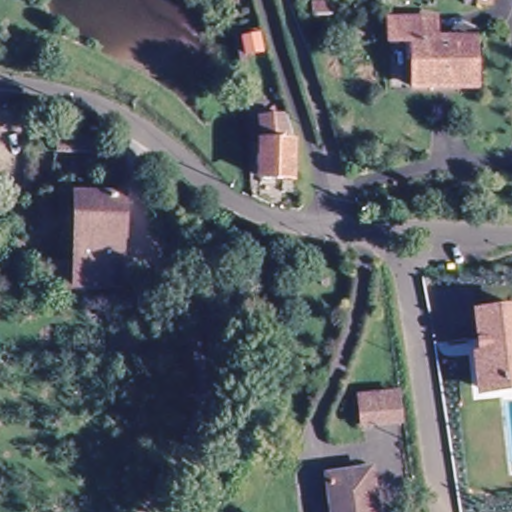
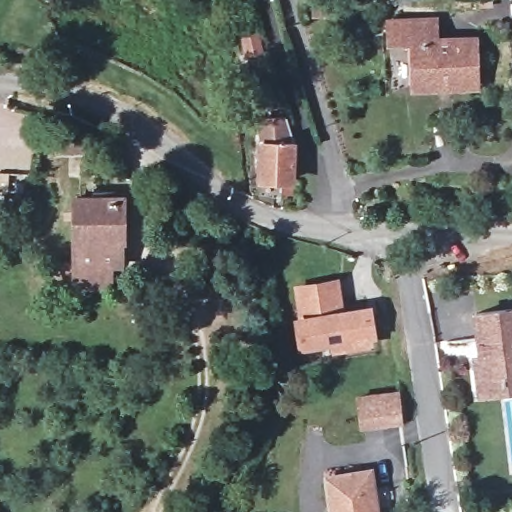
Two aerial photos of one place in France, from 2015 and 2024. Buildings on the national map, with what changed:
unchanged [(436,42),(476,41),(477,83),(412,85),(411,46),(391,46),(391,24),(436,22),(436,42)]
unchanged [(287,199),(254,196),(256,159),(251,142),(279,131),(290,163),(287,199)]
unchanged [(122,235),(117,235),(118,261),(107,261),(107,284),(75,284),(74,194),(121,194),(122,235)]
new [(340,278),(346,309),(374,306),(378,337),(298,350),(293,316),(297,315),(293,285),(340,278)]
unchanged [(472,315),(512,309),(512,397),(486,401),(472,315)]
unchanged [(395,394),(398,419),(361,426),(360,413),(358,398),(395,394)]
unchanged [(325,512),(321,481),(363,475),(368,512),(325,512)]

